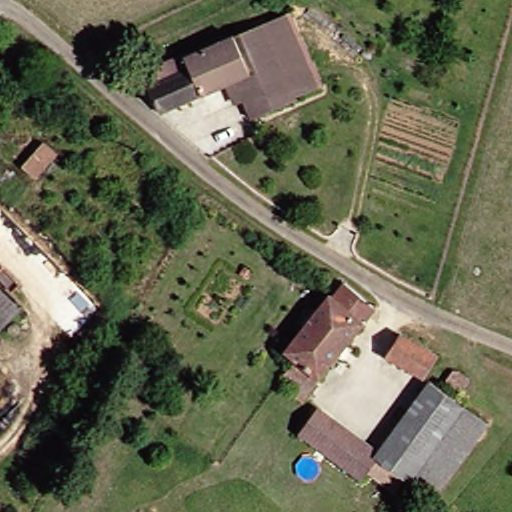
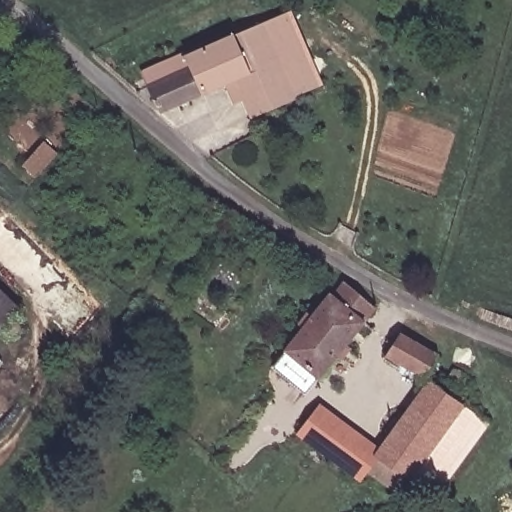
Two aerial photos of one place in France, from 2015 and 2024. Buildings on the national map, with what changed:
unchanged [(259,23),(291,96),(246,118),(228,81),(162,114),(150,90),(190,72),(183,60),(259,23)]
unchanged [(367,308),(293,409),(282,400),(286,395),(275,383),(283,372),(270,361),(318,296),(323,300),(335,286),(367,308)]
unchanged [(10,312),(0,322),(0,303),(10,312)]
unchanged [(416,378),(378,358),(391,339),(428,355),(416,378)]
unchanged [(427,387),(453,409),(400,480),(372,455),(374,452),(427,387)]
unchanged [(480,431),(426,501),(400,480),(453,409),(480,431)]
unchanged [(372,455),(360,468),(310,426),(324,410),(374,452),(372,455)]

